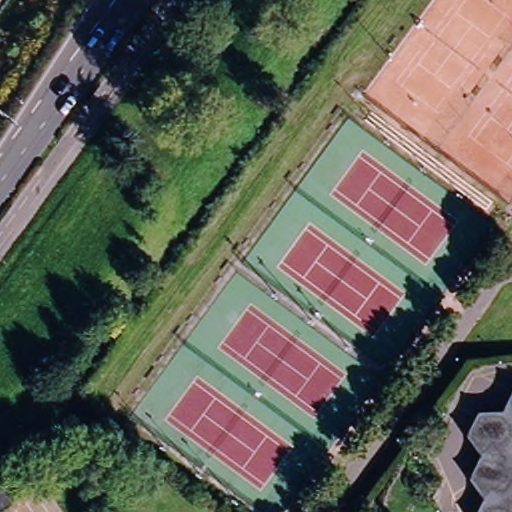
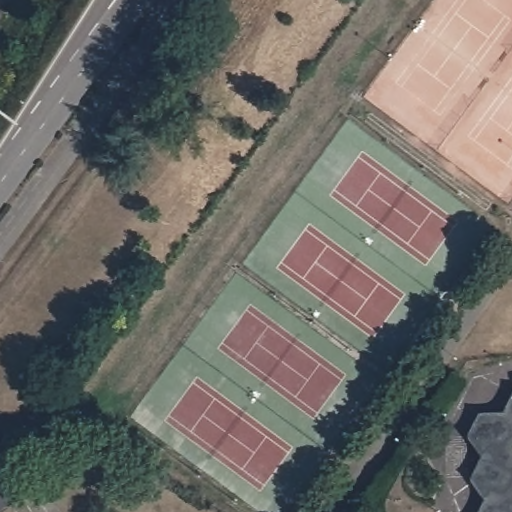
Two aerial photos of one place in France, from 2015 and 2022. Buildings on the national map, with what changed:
unchanged [(365,121),(372,113),(494,202),(487,212),(365,121)]
unchanged [(476,512),(482,500),(469,479),(480,456),(466,436),(477,411),(502,410),(512,390),(512,512),(476,512)]
unchanged [(0,479),(14,500),(0,510),(0,479)]

